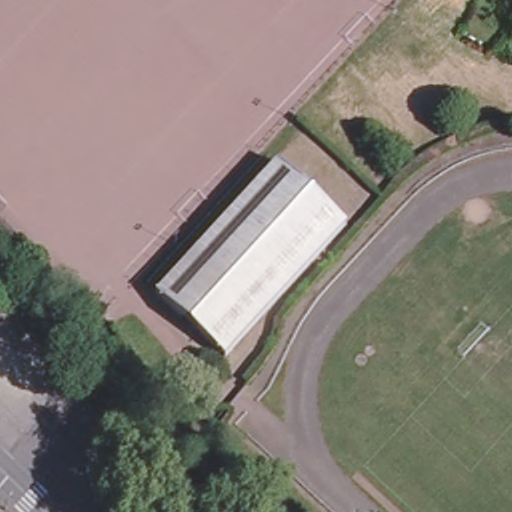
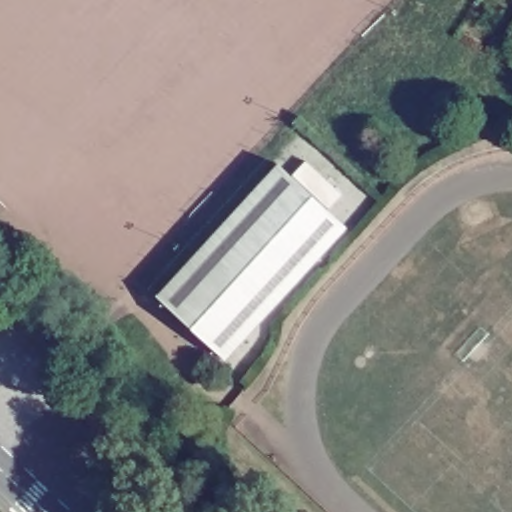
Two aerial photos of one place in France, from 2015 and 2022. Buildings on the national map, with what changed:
unchanged [(346,230),(223,362),(155,299),(278,167),(346,230)]

